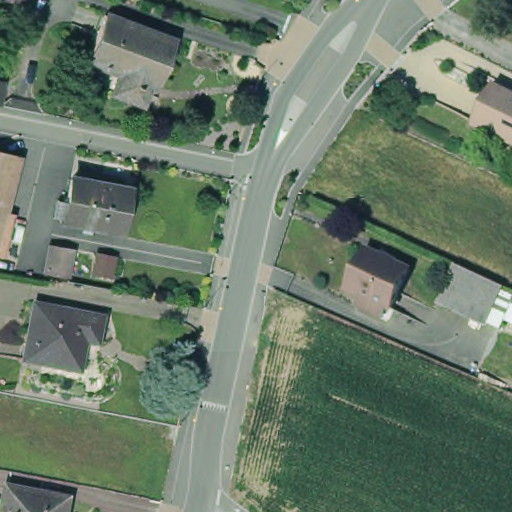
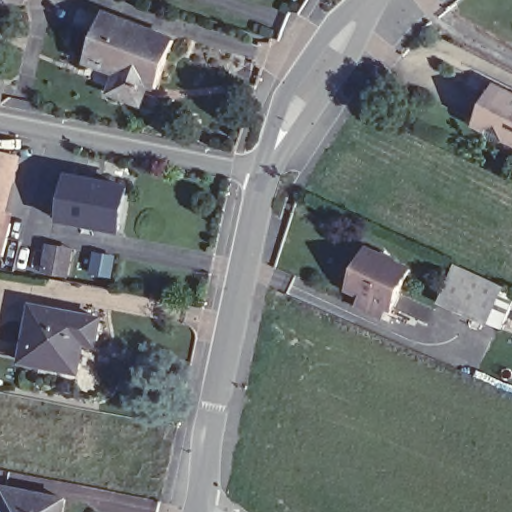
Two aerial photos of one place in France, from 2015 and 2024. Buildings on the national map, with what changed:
unchanged [(5,0),(3,5),(0,4),(0,0),(5,0)]
unchanged [(141,88),(134,107),(103,95),(115,64),(81,52),(98,7),(171,34),(155,81),(149,93),(141,88)]
unchanged [(512,91),(512,142),(484,128),(486,125),(472,118),(486,91),(489,93),(494,82),(512,91)]
unchanged [(1,87),(0,92),(0,87),(1,87)]
unchanged [(8,213),(15,215),(3,259),(0,258),(0,154),(6,155),(21,159),(8,213)]
unchanged [(51,193),(61,195),(66,172),(123,183),(114,224),(58,214),(48,212),(51,193)]
unchanged [(351,296),(356,286),(342,279),(361,241),(404,262),(385,300),(381,310),(351,296)]
unchanged [(68,252),(63,281),(39,276),(44,248),(68,252)]
unchanged [(436,303),(441,292),(453,266),(500,288),(488,314),(484,324),(436,303)]
unchanged [(26,368),(28,358),(11,355),(23,299),(91,311),(86,339),(82,338),(75,376),(26,368)]
unchanged [(64,497),(61,512),(0,512),(0,485),(64,497)]

